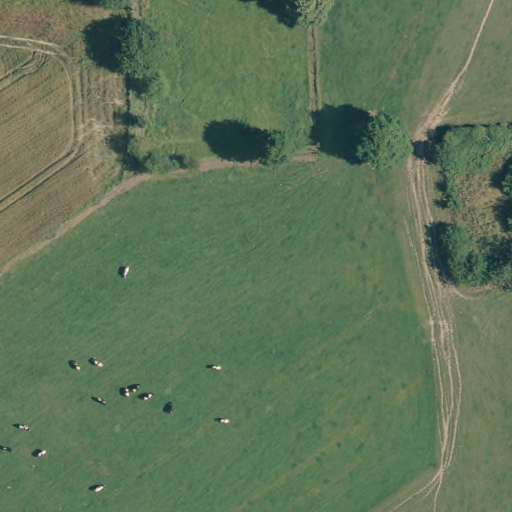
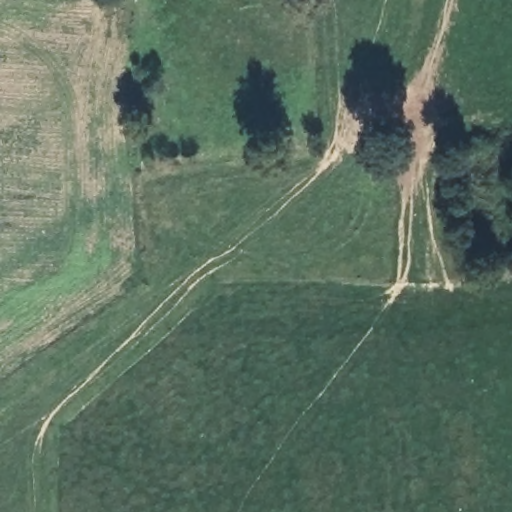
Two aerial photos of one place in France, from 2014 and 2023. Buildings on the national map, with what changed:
[]

